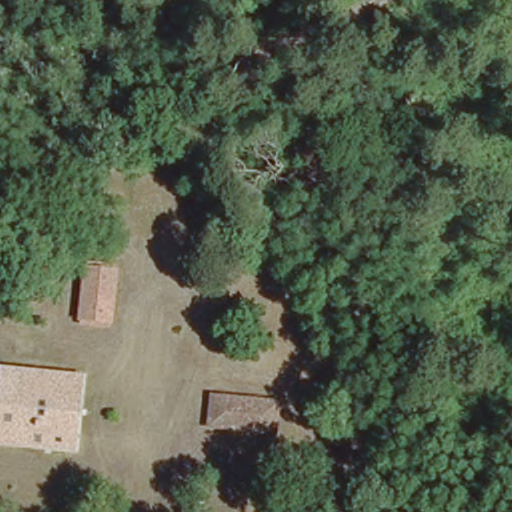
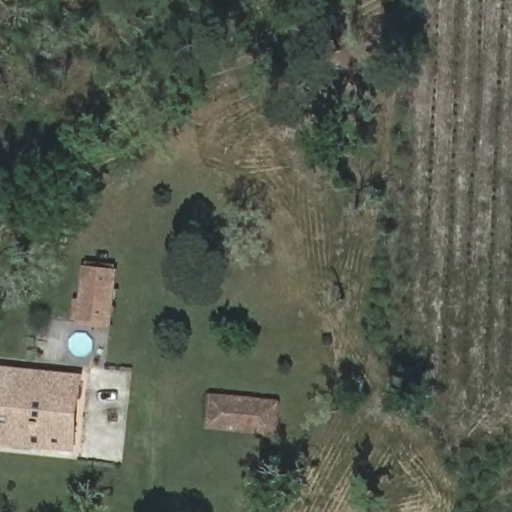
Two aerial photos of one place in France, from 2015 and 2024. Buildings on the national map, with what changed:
unchanged [(89,265),(122,269),(113,329),(81,324),(89,265)]
unchanged [(0,395),(3,367),(85,375),(78,451),(0,443),(0,395)]
unchanged [(212,393),(273,404),(268,431),(207,421),(212,393)]

